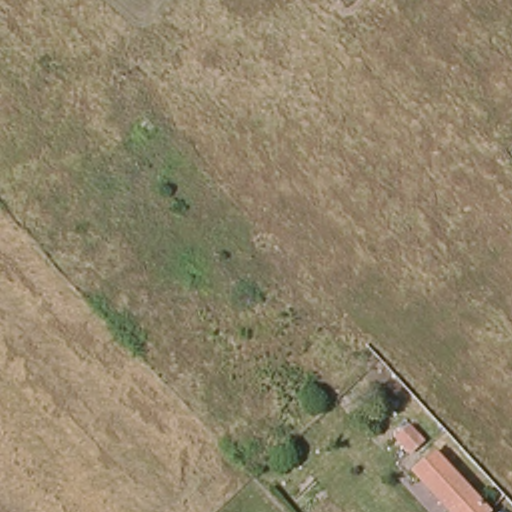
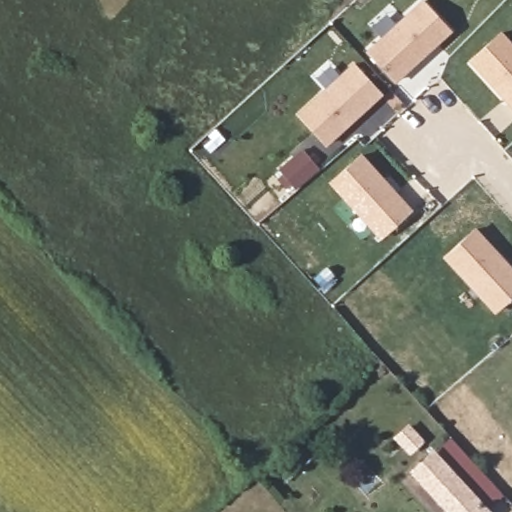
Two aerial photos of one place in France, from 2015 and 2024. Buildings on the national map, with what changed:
new [(424,2),(452,31),(397,81),(369,51),(424,2)]
new [(503,33),(512,44),(512,105),(473,59),(503,33)]
new [(355,65),(382,95),(327,144),(301,114),(355,65)]
new [(362,156),(410,212),(379,239),(331,182),(362,156)]
new [(475,230),(512,270),(512,298),(497,312),(444,256),(475,230)]
unchanged [(489,512),(455,512),(417,470),(437,453),(489,512)]

